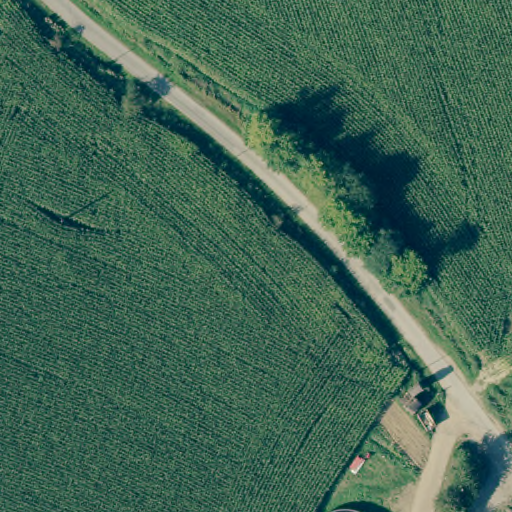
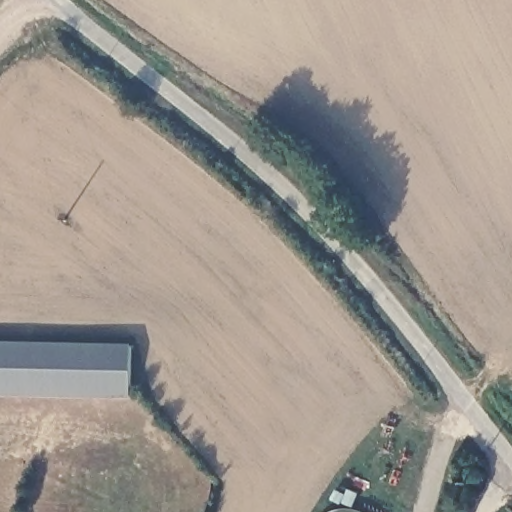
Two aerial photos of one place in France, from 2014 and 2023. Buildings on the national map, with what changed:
new [(132,346),(132,397),(0,395),(0,343),(132,346)]

